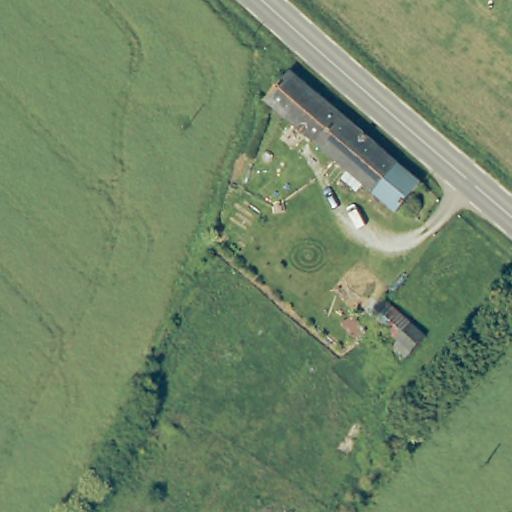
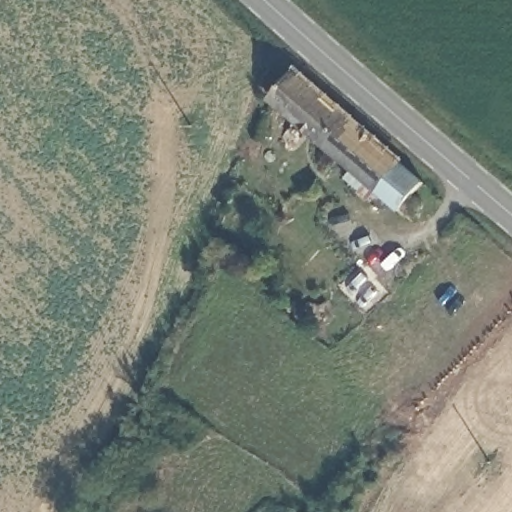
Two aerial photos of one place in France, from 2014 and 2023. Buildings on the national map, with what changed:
unchanged [(411,187),(419,203),(409,212),(399,202),(393,205),(272,95),(293,69),(417,180),(411,187)]
unchanged [(380,291),(371,301),(357,317),(327,290),(336,279),(350,265),(380,291)]
unchanged [(397,349),(400,344),(370,309),(374,303),(393,309),(426,340),(409,361),(397,349)]

